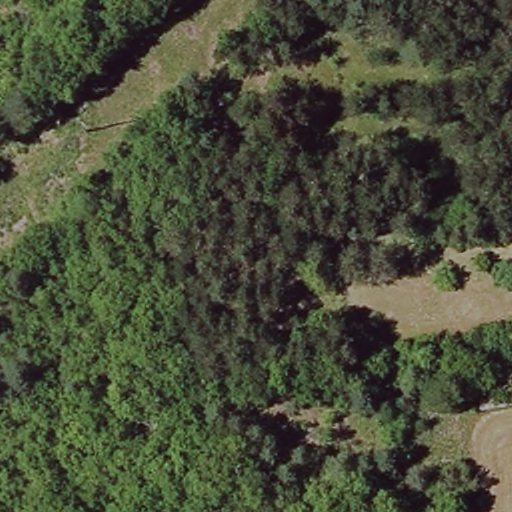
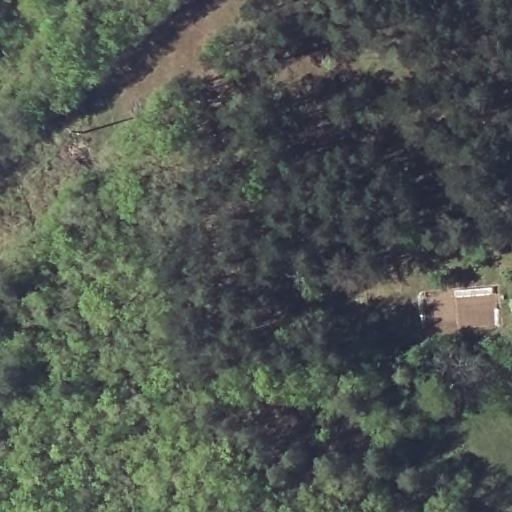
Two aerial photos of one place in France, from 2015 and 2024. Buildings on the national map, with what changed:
new [(497,286),(500,333),(426,340),(421,291),(497,286)]

